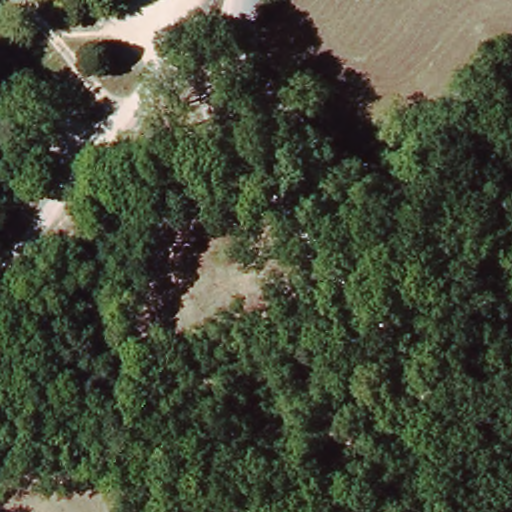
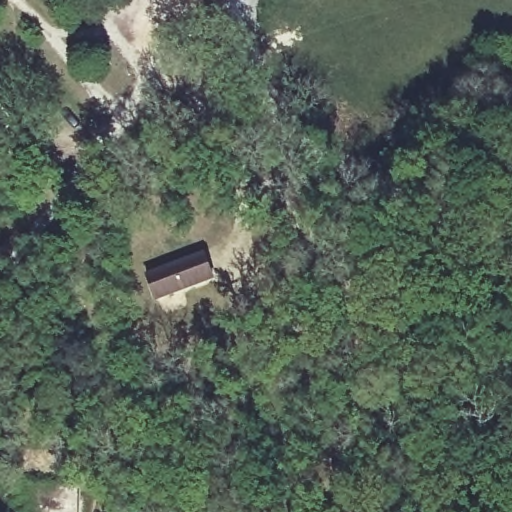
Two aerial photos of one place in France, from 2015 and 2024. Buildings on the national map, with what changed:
unchanged [(33,68),(49,87),(28,104),(13,84),(33,68)]
new [(215,280),(156,301),(146,273),(205,251),(215,280)]

